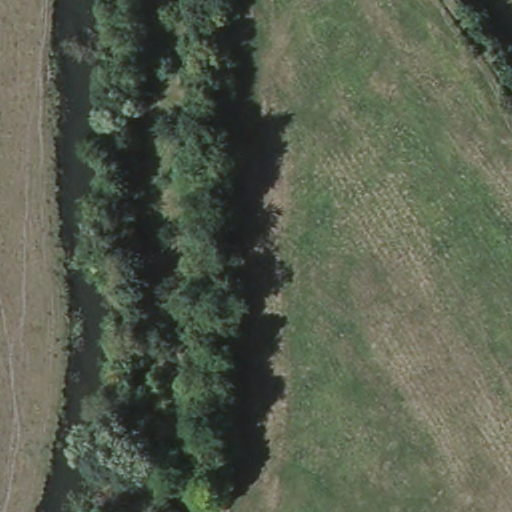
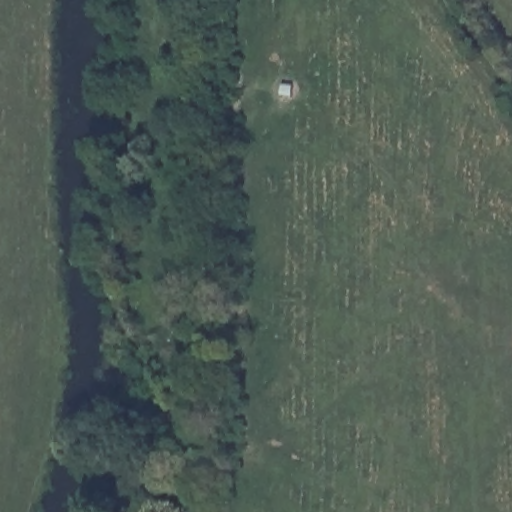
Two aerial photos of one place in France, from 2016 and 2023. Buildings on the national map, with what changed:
unchanged [(229,473),(206,471),(208,423),(231,424),(229,473)]

